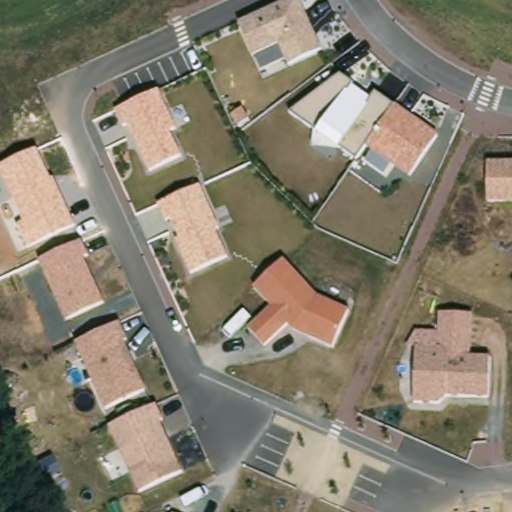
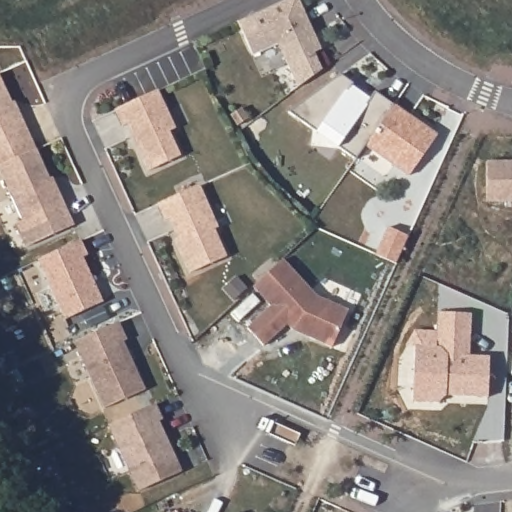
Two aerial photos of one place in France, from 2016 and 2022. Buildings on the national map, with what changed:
unchanged [(278,43),(251,54),(236,20),(280,0),(299,0),(323,50),(287,65),(278,43)]
new [(13,103),(15,102),(37,151),(0,167),(0,74),(13,103)]
unchanged [(365,144),(355,159),(340,148),(311,145),(312,130),(288,112),(339,74),(371,97),(374,93),(393,104),(437,134),(409,175),(365,144)]
unchanged [(156,90),(176,128),(169,132),(181,158),(147,172),(128,125),(121,129),(112,110),(156,90)]
unchanged [(37,151),(50,180),(54,178),(75,226),(26,248),(16,225),(23,222),(0,169),(0,167),(37,151)]
unchanged [(512,199),(483,199),(484,160),(512,160),(512,199)]
unchanged [(198,182),(219,226),(215,228),(227,257),(190,273),(175,241),(178,238),(170,219),(165,222),(157,201),(198,182)]
new [(387,229),(407,238),(395,265),(374,256),(387,229)]
unchanged [(82,242),(87,256),(83,258),(104,303),(64,320),(38,262),(82,242)]
unchanged [(317,296),(347,310),(332,347),(292,330),(285,324),(263,345),(246,326),(269,303),(254,286),(282,258),(317,296)]
unchanged [(435,345),(437,309),(471,311),(470,353),(490,354),(489,396),(445,395),(438,402),(412,399),(414,345),(435,345)]
unchanged [(128,340),(124,342),(145,389),(103,408),(74,340),(119,320),(128,340)]
unchanged [(163,420),(159,423),(181,471),(137,491),(107,424),(154,403),(163,420)]

